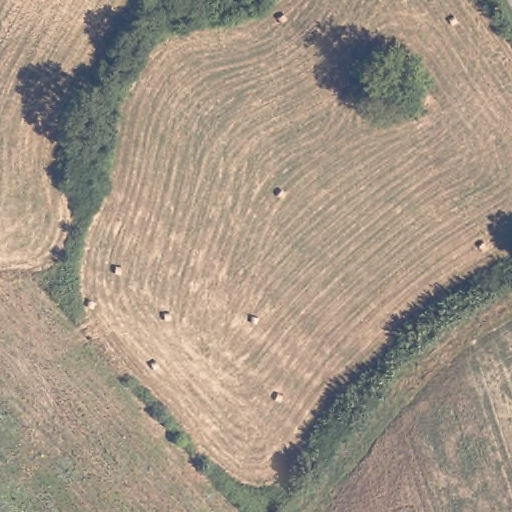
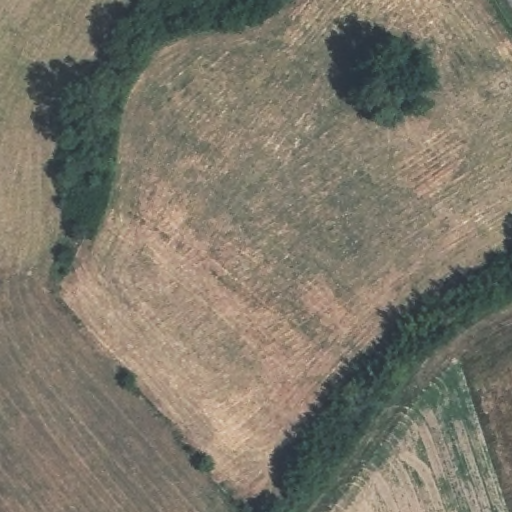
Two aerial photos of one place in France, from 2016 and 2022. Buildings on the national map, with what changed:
[]

